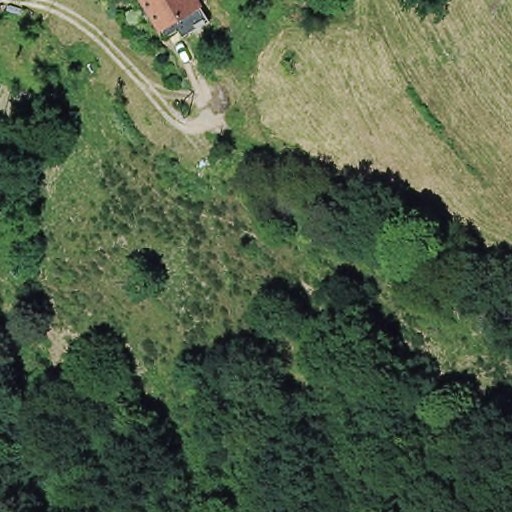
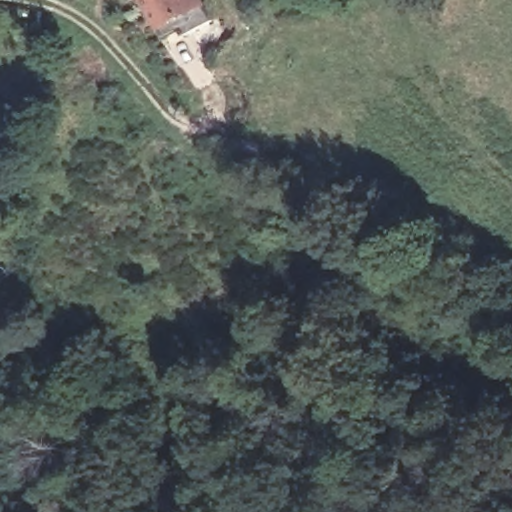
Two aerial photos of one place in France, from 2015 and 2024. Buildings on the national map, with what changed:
unchanged [(171,13),(163,0),(191,0),(171,13)]

